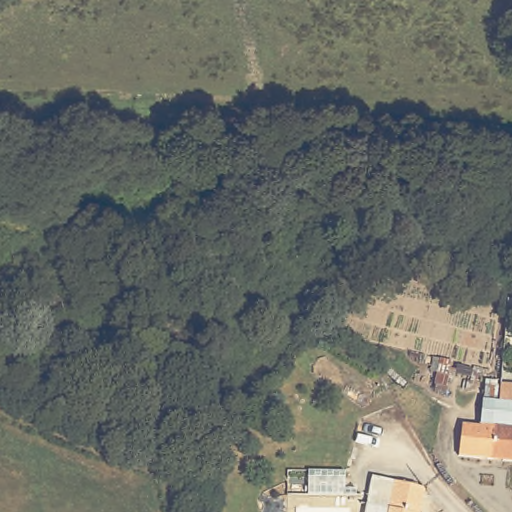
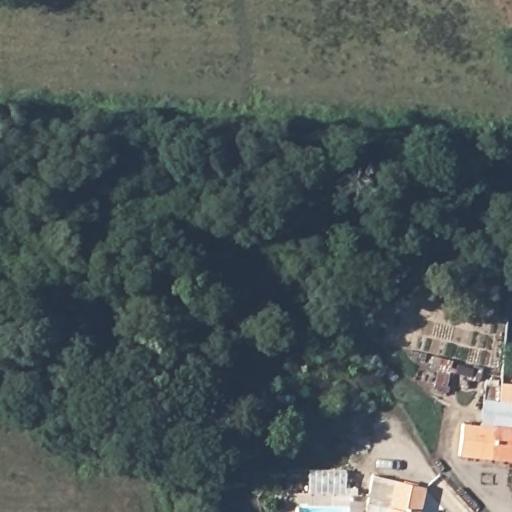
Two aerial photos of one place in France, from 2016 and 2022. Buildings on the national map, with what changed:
unchanged [(462,426),(481,427),(484,401),(499,403),(500,387),(512,388),(512,462),(460,457),(462,426)]
unchanged [(387,512),(390,481),(422,488),(419,512),(387,512)]

